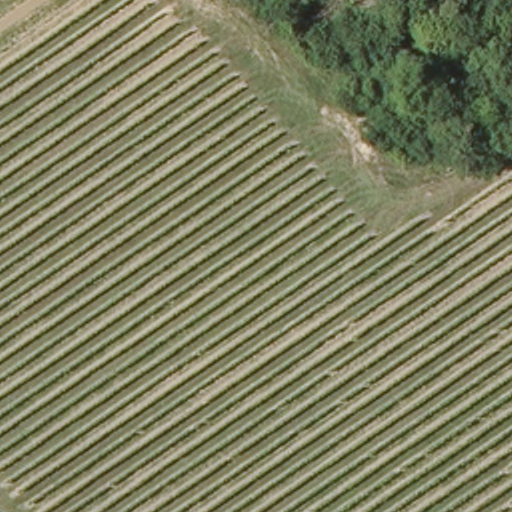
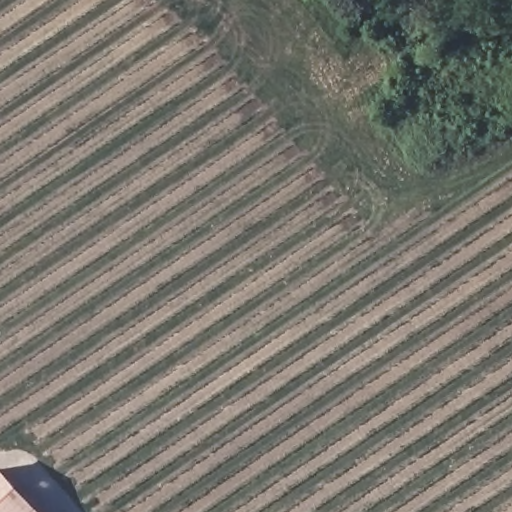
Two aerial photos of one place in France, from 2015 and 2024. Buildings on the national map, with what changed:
new [(44,512),(0,512),(0,466),(1,466),(44,512)]

